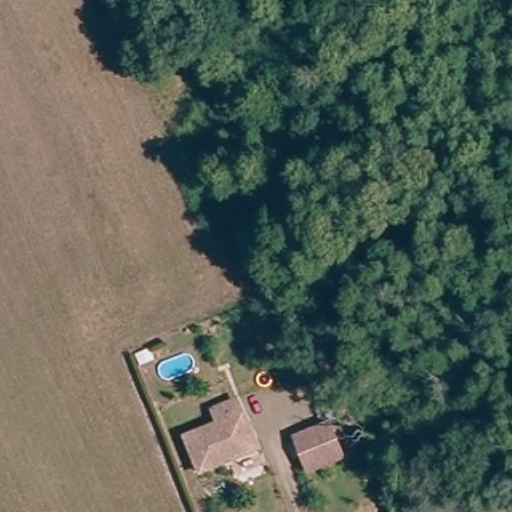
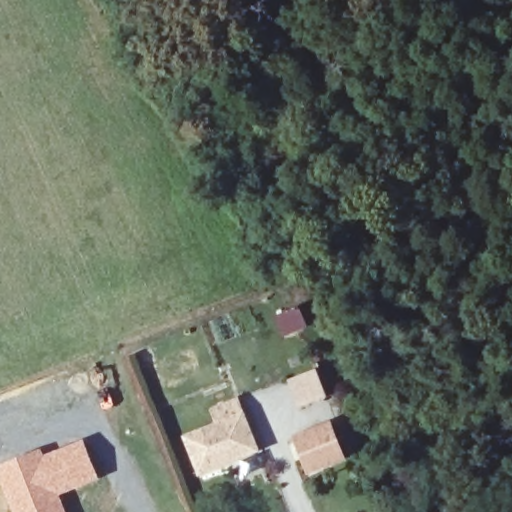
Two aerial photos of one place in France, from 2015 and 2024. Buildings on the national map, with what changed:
unchanged [(224,429),(219,415),(243,405),(263,455),(206,477),(192,442),(224,429)]
unchanged [(345,460),(307,474),(293,434),(330,420),(345,460)]
new [(45,455),(83,439),(101,479),(61,496),(67,512),(10,512),(0,484),(0,465),(41,447),(45,455)]

